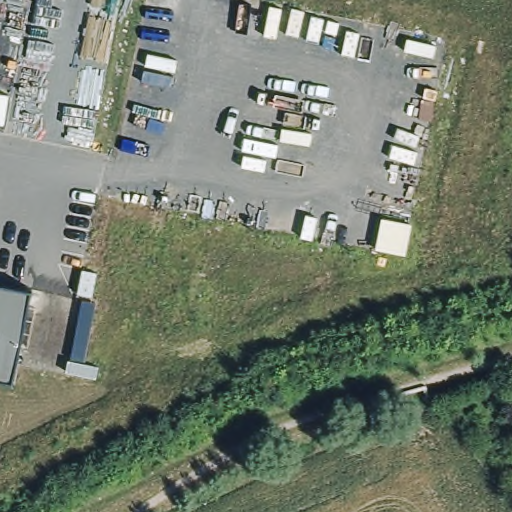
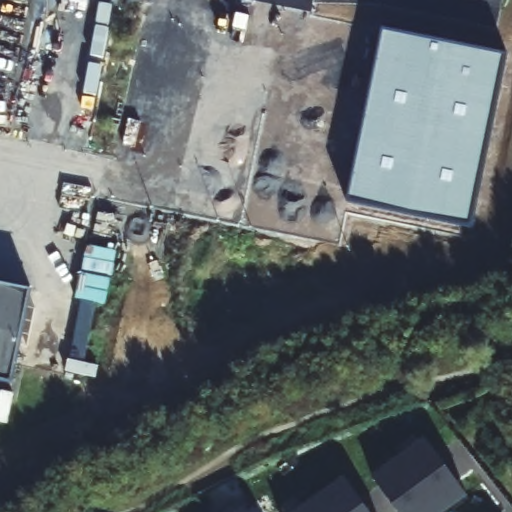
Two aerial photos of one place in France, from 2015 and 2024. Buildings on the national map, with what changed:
new [(471,223),(348,198),(384,31),(506,54),(471,223)]
unchanged [(0,286),(28,292),(11,382),(0,379),(0,286)]
new [(465,495),(442,512),(396,512),(369,474),(423,436),(465,495)]
new [(368,512),(290,512),(342,475),(368,512)]
new [(245,512),(234,512),(241,506),(245,512)]

